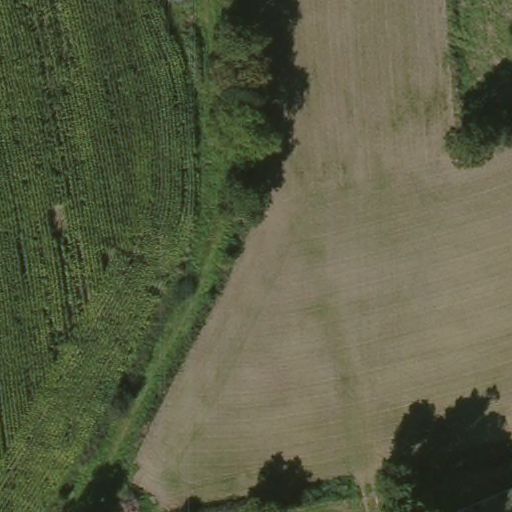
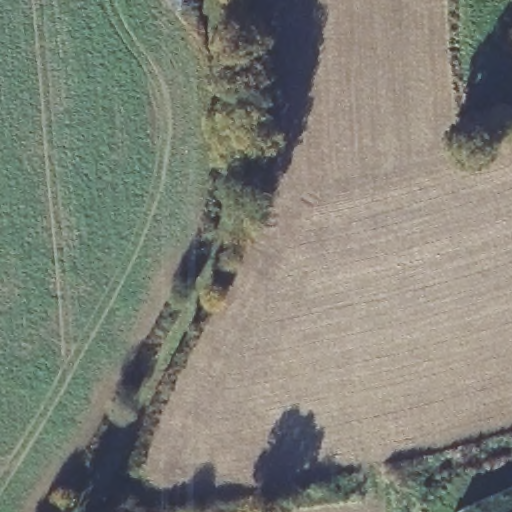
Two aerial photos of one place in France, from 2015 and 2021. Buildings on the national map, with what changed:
unchanged [(512,512),(465,512),(460,500),(512,479),(512,512)]

